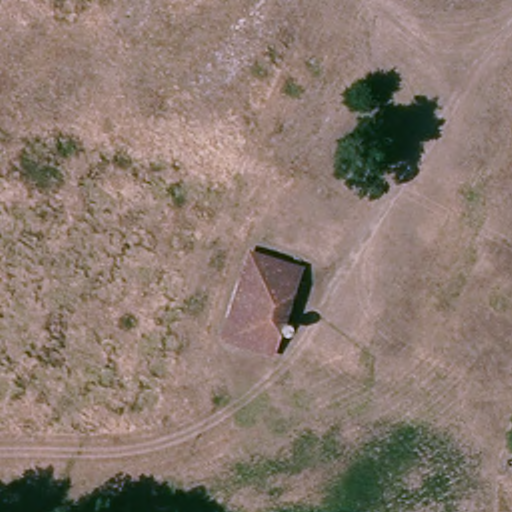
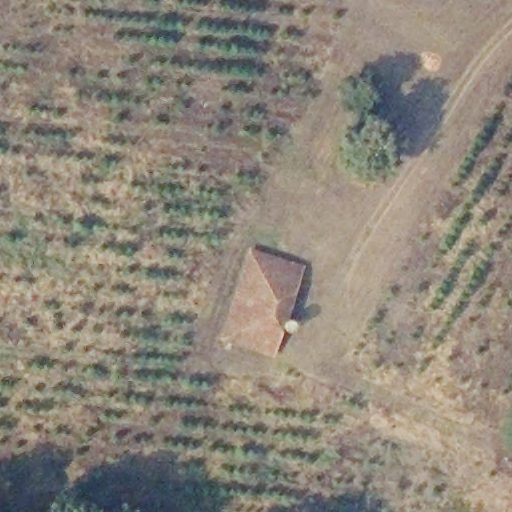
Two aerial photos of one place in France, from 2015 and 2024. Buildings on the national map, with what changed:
unchanged [(303,267),(284,345),(227,330),(247,253),(303,267)]

